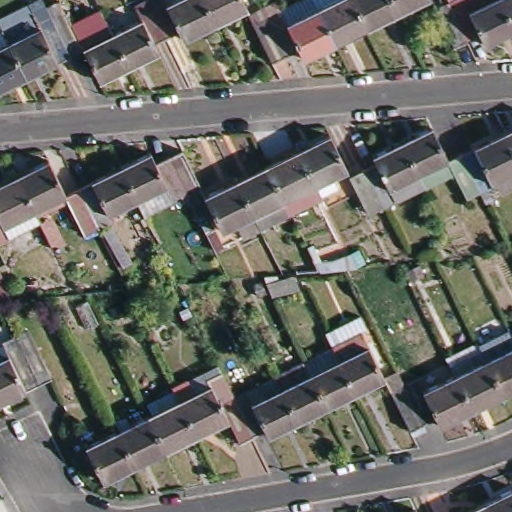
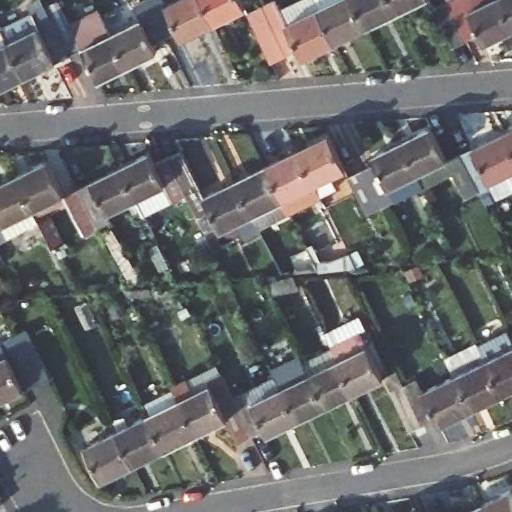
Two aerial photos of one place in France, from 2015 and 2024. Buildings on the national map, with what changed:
unchanged [(153,44),(158,51),(128,66),(112,34),(140,20),(134,6),(147,0),(148,0),(166,37),(153,44)]
unchanged [(183,39),(179,30),(166,37),(148,0),(165,0),(167,5),(177,0),(202,0),(213,24),(183,39)]
unchanged [(213,24),(202,0),(242,0),(245,8),(213,24)]
unchanged [(277,1),(282,11),(304,0),(390,0),(397,13),(366,28),(334,44),(303,59),(298,49),(285,55),(272,62),(248,15),(262,8),(277,1)]
unchanged [(390,0),(422,0),(397,13),(390,0)]
unchanged [(448,3),(454,0),(499,0),(512,26),(512,30),(485,44),(480,33),(465,39),(453,46),(435,9),(448,3)]
unchanged [(499,0),(512,0),(512,26),(499,0)]
unchanged [(47,8),(52,18),(65,11),(83,48),(70,55),(25,77),(0,90),(0,31),(2,30),(47,8)]
unchanged [(112,34),(128,66),(99,80),(83,48),(112,34)]
unchanged [(350,177),(364,170),(377,164),(373,156),(402,143),(432,128),(448,161),(462,154),(480,192),(467,199),(453,174),(424,188),(396,202),(382,208),(368,215),(350,177)]
unchanged [(505,133),(512,130),(512,146),(505,133)]
unchanged [(512,146),(512,189),(501,194),(497,184),(480,192),(462,154),(505,133),(512,146)]
unchanged [(298,151),(330,136),(347,170),(332,177),(337,187),(320,195),(298,151)]
unchanged [(152,153),(157,163),(168,157),(182,150),(201,188),(187,194),(175,200),(167,185),(137,199),(121,168),(152,153)]
unchanged [(298,151),(320,195),(322,198),(290,214),(267,167),(298,151)]
unchanged [(65,195),(34,210),(17,176),(50,160),(67,194),(79,189),(121,168),(137,199),(110,213),(113,220),(98,228),(85,234),(65,195)]
unchanged [(290,214),(260,229),(237,182),(267,167),(290,214)]
unchanged [(34,210),(40,222),(0,241),(0,185),(17,176),(34,210)]
unchanged [(260,229),(243,237),(237,224),(222,231),(205,198),(237,182),(260,229)]
unchanged [(28,330),(52,377),(38,384),(25,390),(0,402),(0,344),(15,337),(28,330)]
unchanged [(323,349),(340,341),(346,353),(357,348),(373,379),(344,394),(323,349)]
unchanged [(503,395),(472,411),(455,378),(447,359),(477,344),(487,362),(503,395)]
unchanged [(344,394),(316,407),(295,363),(323,349),(344,394)]
unchanged [(503,395),(487,362),(512,349),(512,391),(503,395)]
unchanged [(265,377),(295,363),(316,407),(287,421),(265,377)]
unchanged [(287,421),(257,436),(255,430),(242,436),(223,398),(237,392),(243,404),(256,398),(250,385),(265,377),(287,421)]
unchanged [(392,393),(405,387),(419,380),(425,392),(455,378),(472,411),(440,427),(436,418),(423,424),(410,431),(392,393)]
unchanged [(242,436),(228,442),(217,419),(187,434),(170,401),(163,387),(179,379),(186,393),(202,386),(211,404),(223,398),(242,436)]
unchanged [(187,434),(155,450),(138,416),(170,401),(187,434)]
unchanged [(155,450),(124,465),(107,431),(138,416),(155,450)]
unchanged [(124,465),(92,481),(75,447),(107,431),(124,465)]
unchanged [(480,503),(510,489),(512,493),(512,512),(485,512),(480,503)]
unchanged [(480,503),(485,512),(462,512),(480,503)]
unchanged [(410,509),(411,512),(405,512),(410,509)]

